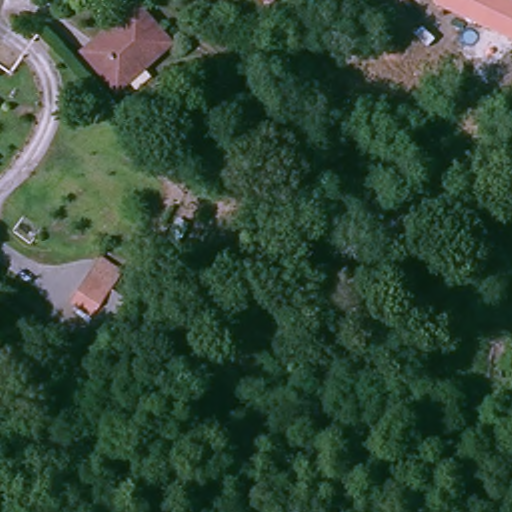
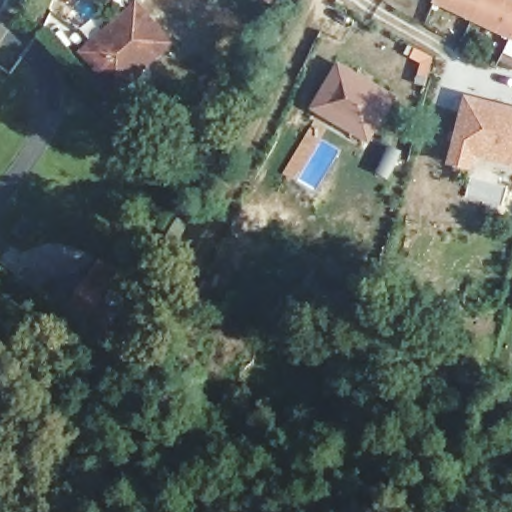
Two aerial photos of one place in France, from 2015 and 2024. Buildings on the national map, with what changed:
unchanged [(433,0),(512,0),(512,41),(432,2),(433,0)]
unchanged [(170,44),(118,92),(91,61),(86,55),(122,22),(138,7),(170,44)]
new [(399,96),(369,144),(310,110),(338,62),(399,96)]
new [(512,165),(475,156),(471,171),(446,165),(464,94),(512,106),(512,165)]
unchanged [(122,273),(111,288),(124,298),(102,332),(67,304),(101,256),(122,273)]

